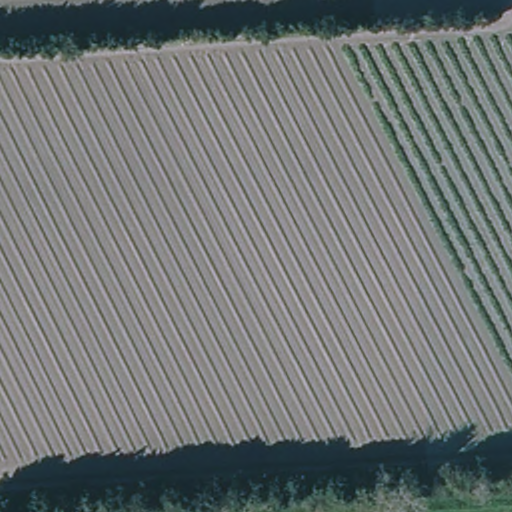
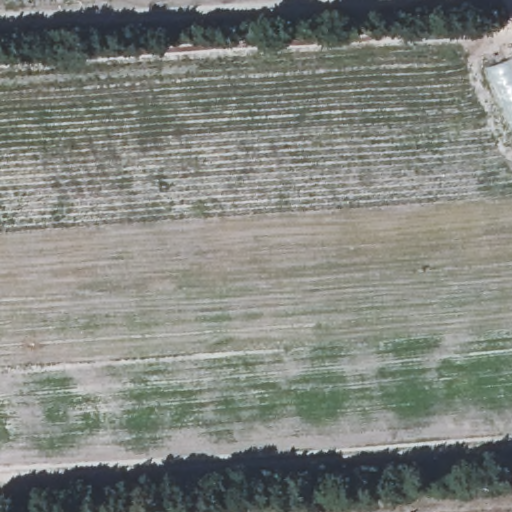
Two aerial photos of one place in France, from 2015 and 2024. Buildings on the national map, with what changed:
new [(512,53),(512,134),(483,66),(512,53)]

